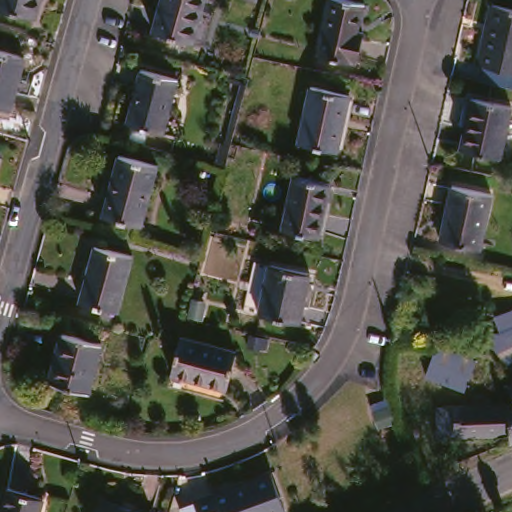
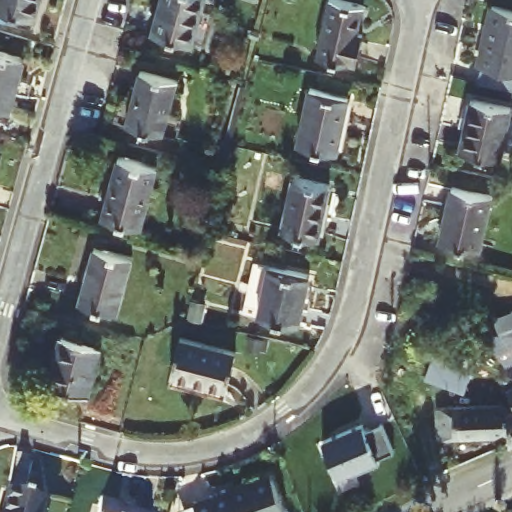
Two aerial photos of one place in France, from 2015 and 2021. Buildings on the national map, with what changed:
unchanged [(0,13),(0,0),(36,0),(30,21),(0,13)]
unchanged [(193,46),(152,35),(163,0),(206,0),(193,46)]
unchanged [(359,35),(364,37),(357,69),(316,60),(330,1),(365,9),(363,21),(359,35)]
unchanged [(490,40),(498,10),(512,14),(512,77),(479,70),(486,39),(488,39),(490,40)]
unchanged [(0,110),(0,55),(24,62),(16,87),(8,112),(0,110)]
unchanged [(175,82),(158,135),(124,126),(138,72),(156,77),(175,82)]
unchanged [(336,156),(298,147),(310,91),(349,100),(343,129),(336,156)]
unchanged [(506,110),(496,160),(455,151),(465,101),(486,105),(506,110)]
unchanged [(138,229),(98,219),(113,157),(153,167),(145,198),(138,229)]
unchanged [(329,187),(318,242),(281,234),(294,179),(312,183),(329,187)]
unchanged [(491,199),(479,254),(439,245),(452,191),(471,195),(491,199)]
unchanged [(113,316),(75,305),(89,250),(128,262),(121,289),(113,316)]
unchanged [(311,277),(300,327),(257,317),(270,268),(291,273),(311,277)]
unchanged [(483,338),(501,339),(489,323),(504,309),(512,303),(512,369),(509,371),(483,338)]
unchanged [(102,346),(88,395),(46,383),(60,335),(81,341),(102,346)]
unchanged [(230,354),(220,392),(164,377),(174,340),(203,347),(230,354)]
unchanged [(468,364),(459,391),(423,380),(433,352),(468,364)]
unchanged [(502,414),(511,408),(503,390),(512,385),(512,443),(504,447),(503,440),(502,414)]
unchanged [(431,443),(430,411),(502,408),(502,414),(503,440),(431,443)]
new [(321,440),(361,423),(364,432),(381,425),(393,452),(377,460),(338,477),(321,440)]
unchanged [(283,511),(279,512),(196,512),(191,499),(210,492),(211,494),(270,474),(279,501),(283,511)]
unchanged [(35,512),(0,512),(0,498),(3,487),(39,496),(35,512)]
unchanged [(114,505),(114,507),(129,512),(96,512),(99,501),(114,505)]

